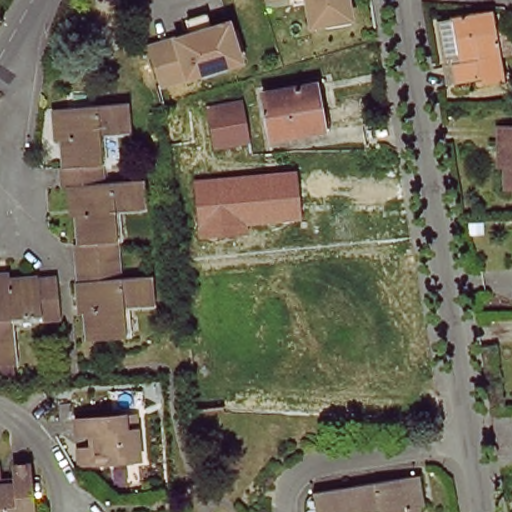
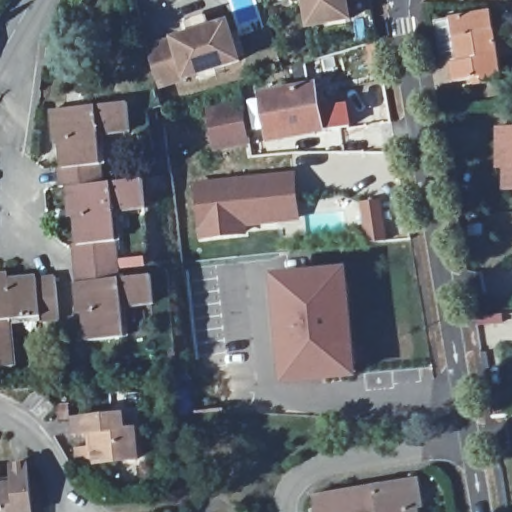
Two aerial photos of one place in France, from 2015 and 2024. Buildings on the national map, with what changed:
unchanged [(347,0),(351,20),(313,26),(308,0),(347,0)]
unchanged [(484,85),(483,79),(450,85),(438,22),(492,12),(504,81),(484,85)]
unchanged [(147,50),(229,24),(241,62),(158,87),(150,60),(146,50),(147,50)]
unchanged [(316,85),(320,102),(326,101),(331,130),(271,141),(263,95),(316,85)]
unchanged [(62,140),(56,141),(55,131),(53,110),(129,103),(131,132),(100,135),(105,184),(69,187),(61,188),(59,169),(65,168),(62,140)]
unchanged [(253,142),(220,149),(213,110),(246,105),(253,142)]
unchanged [(510,190),(510,168),(503,168),(503,145),(503,129),(512,128),(512,190),(510,190)]
unchanged [(301,222),(248,228),(250,236),(200,240),(195,184),(296,175),(301,222)]
unchanged [(144,180),(146,209),(115,212),(120,260),(76,265),(74,245),(80,245),(77,217),(71,218),(70,208),(69,187),(105,184),(144,180)]
unchanged [(78,283),(76,265),(120,260),(121,279),(153,276),(156,305),(123,308),(126,337),(89,341),(86,313),(80,314),(80,304),(78,283)]
new [(341,272),(348,380),(276,385),(269,275),(341,272)]
unchanged [(65,321),(46,323),(46,317),(16,320),(20,366),(0,368),(0,277),(5,276),(15,276),(15,281),(43,279),(61,277),(63,287),(65,310),(65,321)]
unchanged [(79,465),(78,450),(95,447),(94,433),(76,435),(75,420),(125,415),(136,414),(137,428),(140,459),(79,465)]
demolished [(502,469),(493,417),(512,416),(512,468),(502,469)]
unchanged [(0,463),(4,463),(5,481),(20,480),(19,462),(34,460),(38,510),(39,512),(0,512),(0,463)]
unchanged [(318,495),(422,478),(425,499),(427,508),(422,510),(422,512),(320,512),(318,495)]

